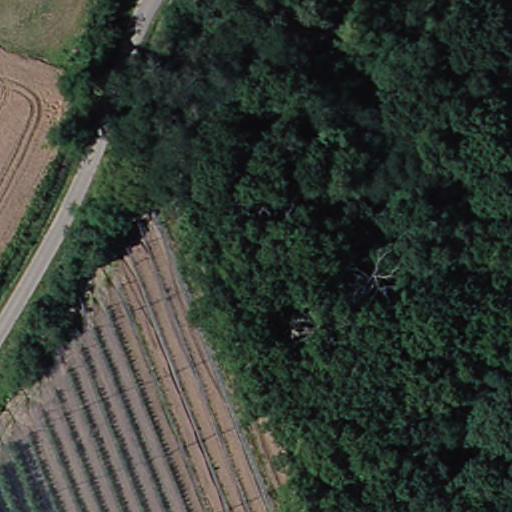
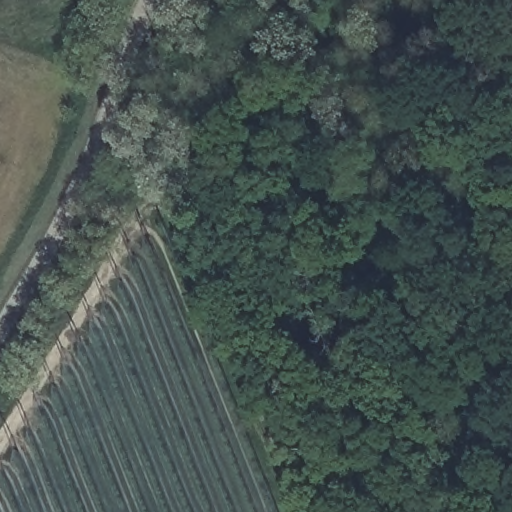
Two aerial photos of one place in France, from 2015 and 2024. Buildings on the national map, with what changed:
[]

